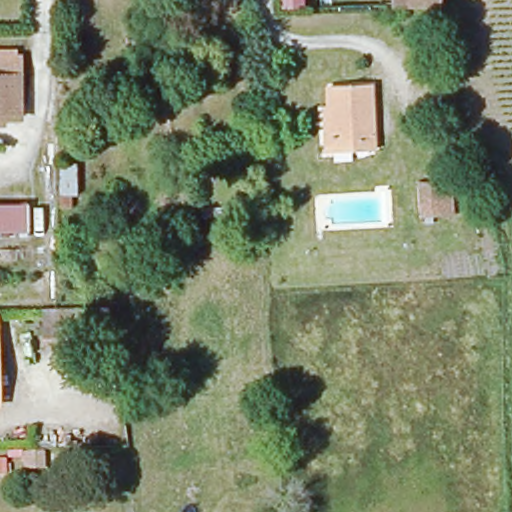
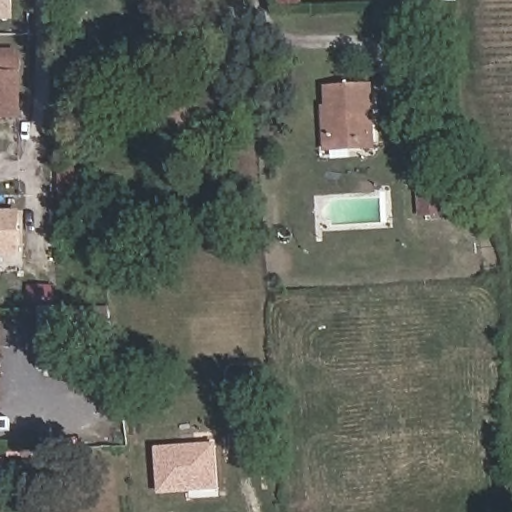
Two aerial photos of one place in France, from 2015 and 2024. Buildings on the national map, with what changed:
new [(0,0),(11,0),(11,19),(0,19),(0,0)]
unchanged [(392,0),(443,0),(443,7),(392,9),(392,0)]
unchanged [(155,38),(156,56),(127,58),(127,41),(155,38)]
unchanged [(18,119),(0,119),(0,57),(18,57),(18,119)]
unchanged [(325,156),(325,144),(322,112),(326,110),(326,91),(372,90),(373,143),(373,154),(325,156)]
unchanged [(76,164),(77,196),(72,197),(72,210),(60,211),(60,164),(76,164)]
unchanged [(419,176),(440,175),(450,174),(451,193),(451,206),(441,206),(420,207),(420,196),(419,176)]
unchanged [(0,236),(0,205),(29,204),(30,234),(0,236)]
unchanged [(46,341),(46,311),(110,310),(112,343),(46,341)]
new [(159,495),(155,446),(216,444),(220,489),(159,495)]

